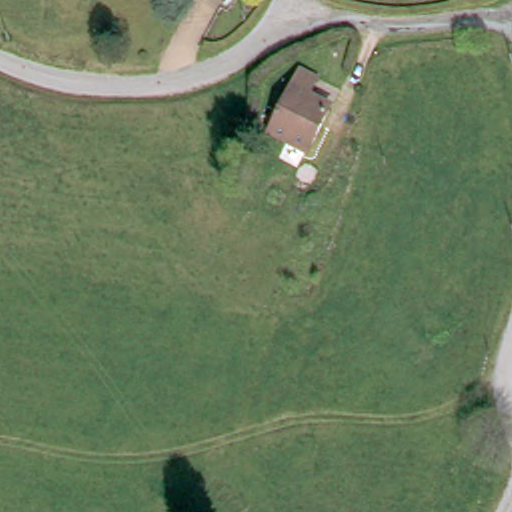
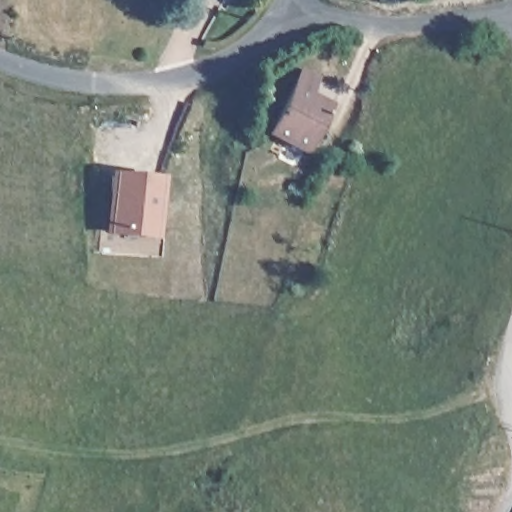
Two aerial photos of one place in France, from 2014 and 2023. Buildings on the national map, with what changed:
unchanged [(309,150),(270,131),(292,85),(300,67),(313,73),(305,90),(330,104),(309,150)]
new [(112,171),(161,175),(157,230),(108,227),(112,171)]

